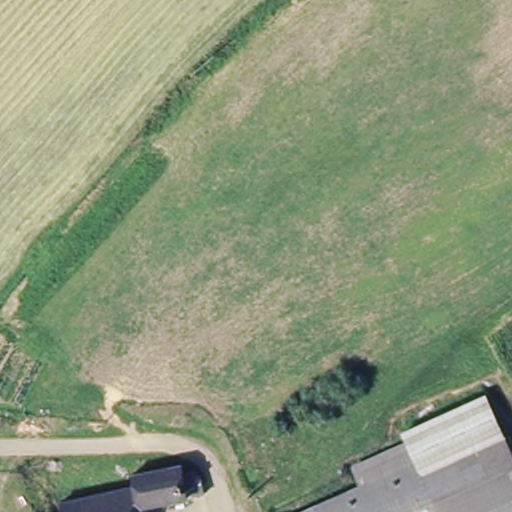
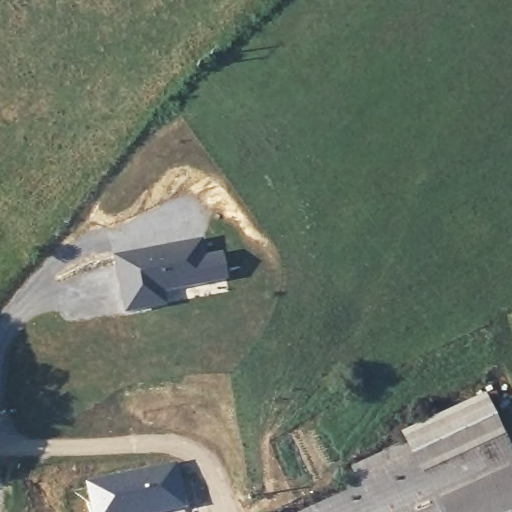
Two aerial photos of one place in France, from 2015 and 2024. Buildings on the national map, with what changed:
new [(202,238),(206,254),(222,251),(228,280),(163,293),(165,306),(125,313),(114,256),(202,238)]
unchanged [(414,457),(405,441),(401,432),(447,408),(484,390),(496,415),(503,427),(512,445),(512,512),(442,512),(414,457)]
unchanged [(366,482),(358,466),(405,441),(414,457),(442,512),(308,512),(366,482)]
unchanged [(54,499),(131,481),(128,470),(176,460),(180,471),(199,470),(203,490),(136,504),(138,512),(57,512),(54,499)]

